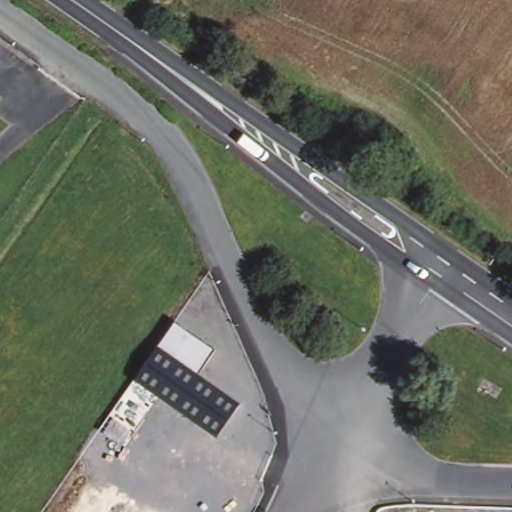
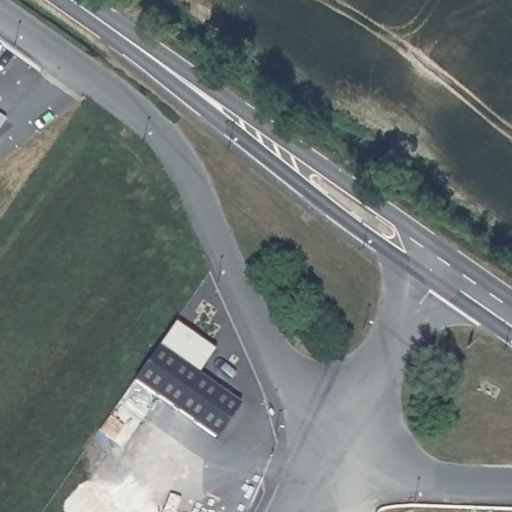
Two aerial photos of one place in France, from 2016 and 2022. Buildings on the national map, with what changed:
unchanged [(217,440),(134,383),(175,323),(216,350),(200,375),(241,405),(217,440)]

